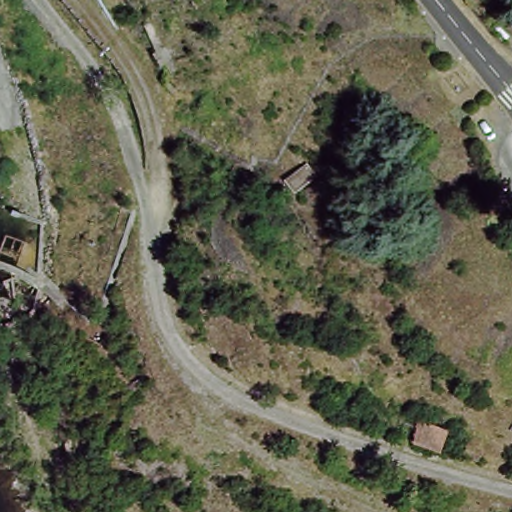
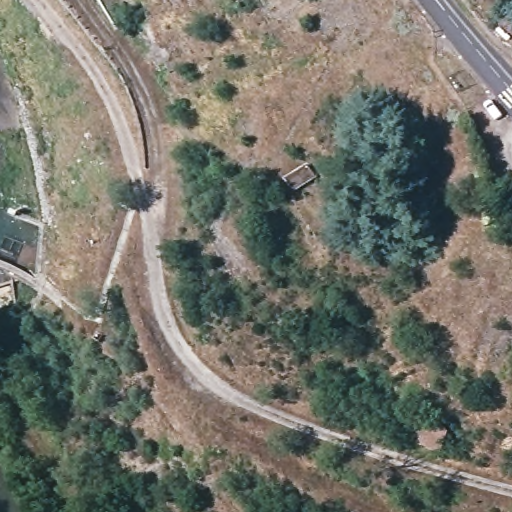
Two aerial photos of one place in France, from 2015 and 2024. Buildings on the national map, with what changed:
unchanged [(322,176),(294,196),(285,179),(313,162),(322,176)]
unchanged [(421,418),(455,427),(450,454),(415,445),(421,418)]

